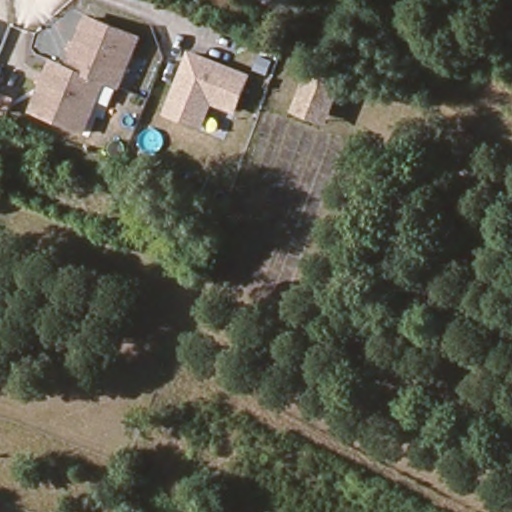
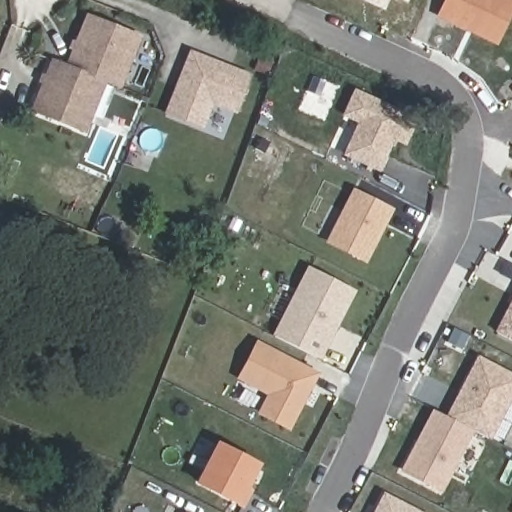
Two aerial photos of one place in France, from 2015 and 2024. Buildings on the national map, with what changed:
new [(383,10),(361,0),(388,0),(383,10)]
new [(407,2),(401,0),(408,0),(407,2)]
new [(512,13),(497,46),(434,17),(442,0),(512,0),(512,13)]
unchanged [(124,83),(110,77),(102,74),(97,72),(71,61),(90,15),(96,13),(144,32),(124,83)]
unchanged [(211,102),(201,128),(167,114),(177,89),(185,70),(191,55),(249,78),(235,112),(211,102)]
unchanged [(110,77),(90,127),(37,106),(57,56),(71,61),(97,72),(102,74),(110,77)]
unchanged [(325,123),(297,113),(308,83),(311,77),(339,88),(325,123)]
new [(360,93),(419,120),(409,143),(397,138),(383,169),(351,154),(365,122),(350,115),(360,93)]
unchanged [(7,117),(0,115),(0,95),(14,101),(7,117)]
new [(358,193),(394,211),(369,261),(333,242),(358,193)]
new [(313,270),(357,292),(323,359),(280,337),(313,270)]
new [(512,339),(502,333),(512,313),(512,339)]
new [(293,429),(266,414),(235,398),(245,379),(262,346),(321,376),(310,397),(307,403),(293,429)]
new [(482,360),(512,377),(512,400),(491,440),(451,419),(460,401),(463,394),(482,360)]
new [(437,410),(451,419),(475,431),(442,489),(406,470),(437,410)]
new [(226,446),(264,466),(252,490),(257,492),(250,506),(206,484),(226,446)]
new [(418,512),(380,512),(388,496),(418,512)]

